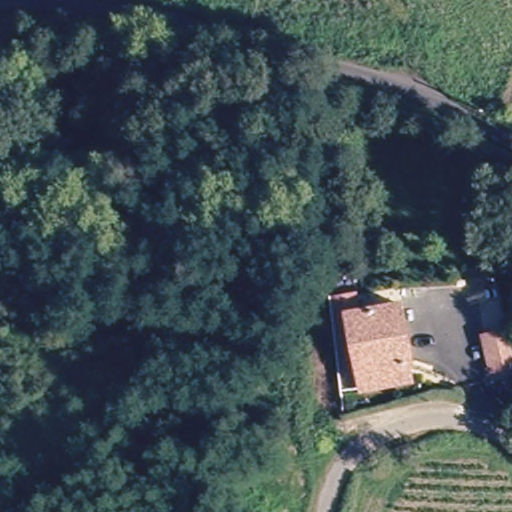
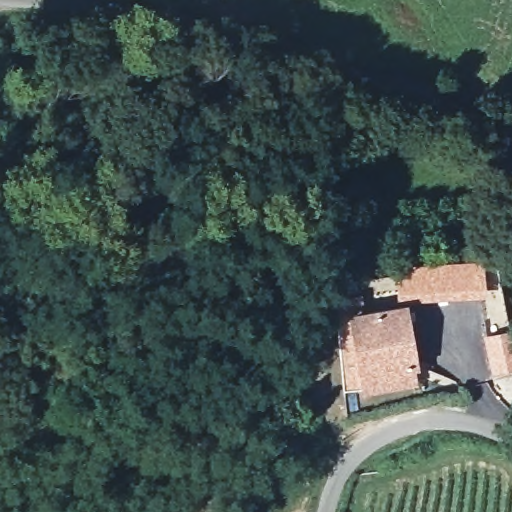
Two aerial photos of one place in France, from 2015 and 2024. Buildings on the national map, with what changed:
new [(394,263),(483,257),(486,296),(396,300),(394,263)]
unchanged [(414,385),(351,392),(350,361),(346,316),(344,295),(364,293),(366,313),(406,309),(414,385)]
unchanged [(482,337),(510,332),(512,343),(512,365),(488,369),(482,337)]

